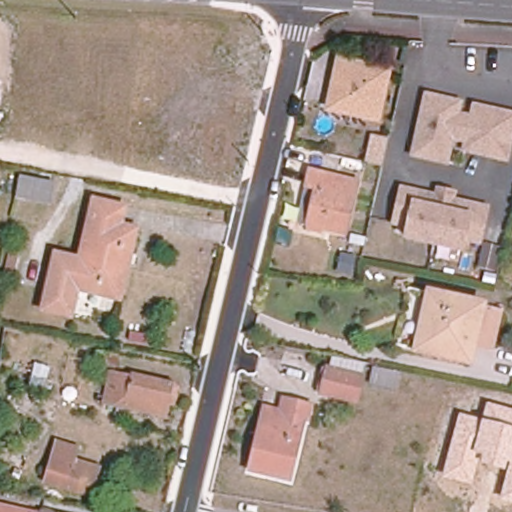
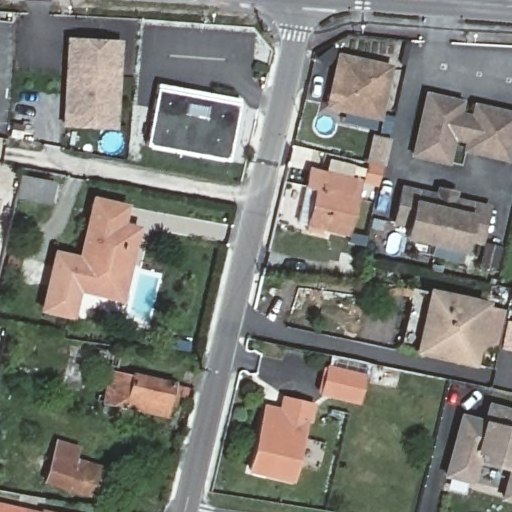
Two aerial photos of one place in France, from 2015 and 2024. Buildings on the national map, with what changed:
new [(61,126),(65,37),(122,40),(117,128),(61,126)]
unchanged [(379,120),(326,107),(337,52),(392,65),(379,120)]
new [(228,161),(146,145),(156,86),(239,102),(228,161)]
unchanged [(461,151),(463,142),(454,140),(449,165),(410,155),(424,91),(463,99),(461,111),(470,113),(472,102),(512,110),(512,146),(508,161),(461,151)]
unchanged [(354,177),(342,230),(319,224),(318,230),(303,226),(312,184),(303,181),(306,165),(354,177)]
unchanged [(18,197),(22,176),(54,182),(51,203),(18,197)]
unchanged [(482,245),(465,241),(464,252),(404,239),(406,225),(391,224),(400,184),(434,191),(435,185),(457,191),(456,198),(489,205),(482,245)]
unchanged [(90,200),(121,206),(117,225),(136,229),(128,263),(124,262),(115,299),(74,290),(67,316),(39,310),(52,254),(76,259),(90,200)]
unchanged [(360,241),(346,237),(347,230),(362,233),(360,241)]
unchanged [(500,310),(490,351),(470,347),(466,365),(411,351),(425,292),(500,310)]
unchanged [(120,355),(118,367),(94,362),(97,350),(120,355)]
unchanged [(359,376),(353,402),(318,394),(324,368),(359,376)]
unchanged [(400,375),(397,387),(374,383),(376,370),(400,375)]
unchanged [(174,383),(167,416),(105,402),(112,373),(132,378),(132,374),(174,383)]
unchanged [(291,480),(251,471),(266,408),(282,411),(285,400),(313,406),(309,420),(306,420),(291,480)]
unchanged [(505,471),(479,465),(473,485),(442,477),(459,413),(482,420),(486,403),(512,410),(512,504),(499,500),(505,471)]
unchanged [(69,460),(95,467),(87,495),(42,481),(53,442),(73,448),(69,460)]
unchanged [(42,512),(0,512),(0,504),(42,512)]
unchanged [(66,512),(42,512),(43,507),(66,512)]

